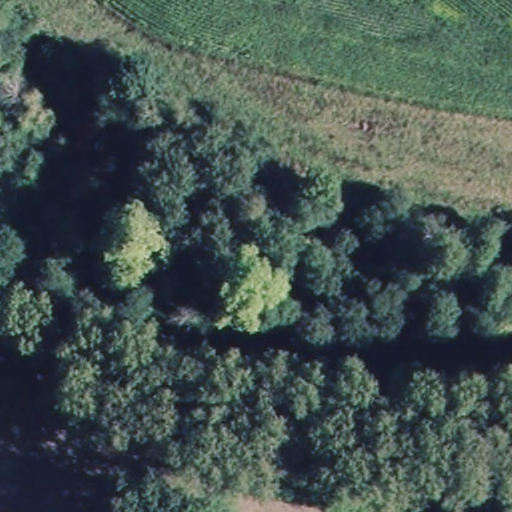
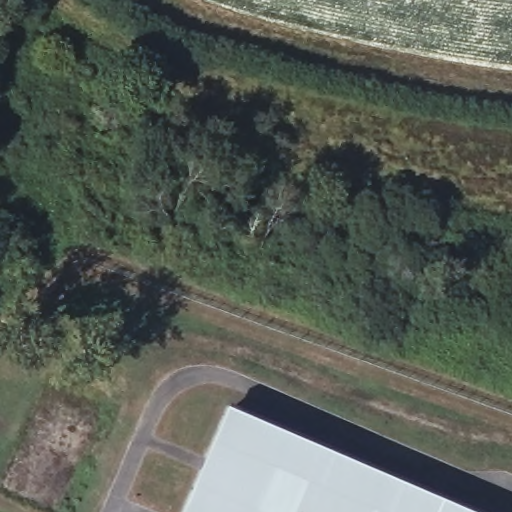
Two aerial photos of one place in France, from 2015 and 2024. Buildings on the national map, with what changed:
new [(225,410),(464,512),(182,512),(225,410)]

